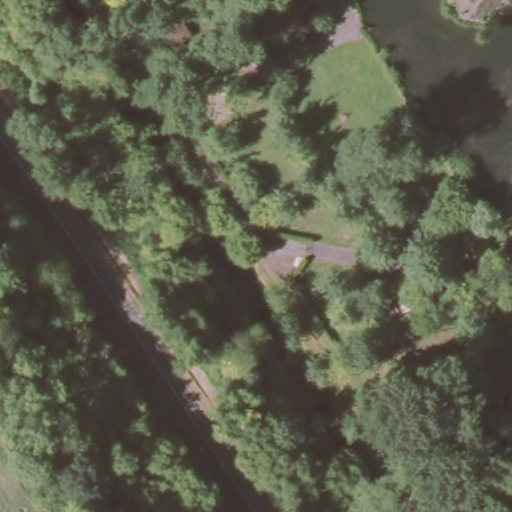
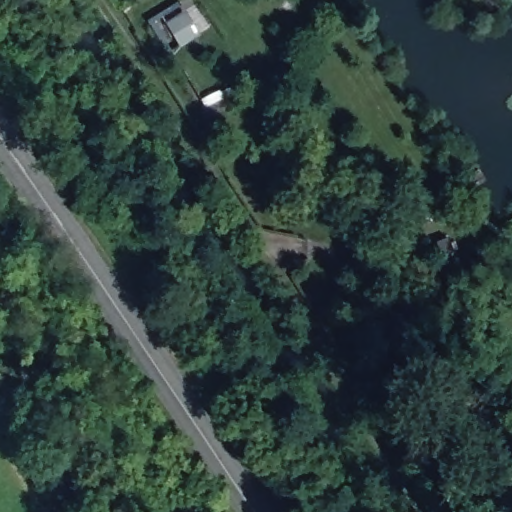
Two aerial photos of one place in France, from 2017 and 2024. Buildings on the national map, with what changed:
unchanged [(175,49),(162,25),(183,14),(198,38),(175,49)]
unchanged [(252,176),(240,152),(260,140),(275,165),(252,176)]
unchanged [(453,503),(440,480),(461,468),(475,492),(453,503)]

